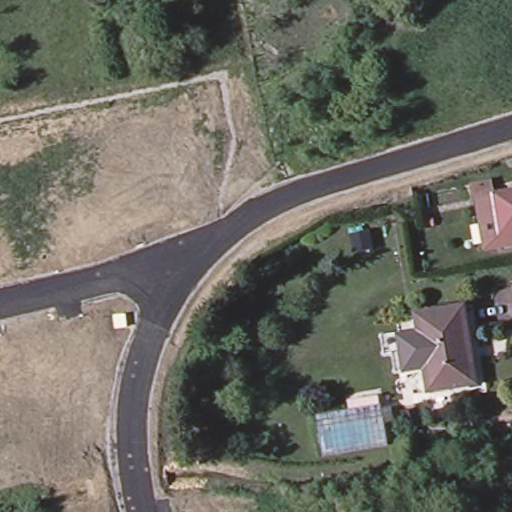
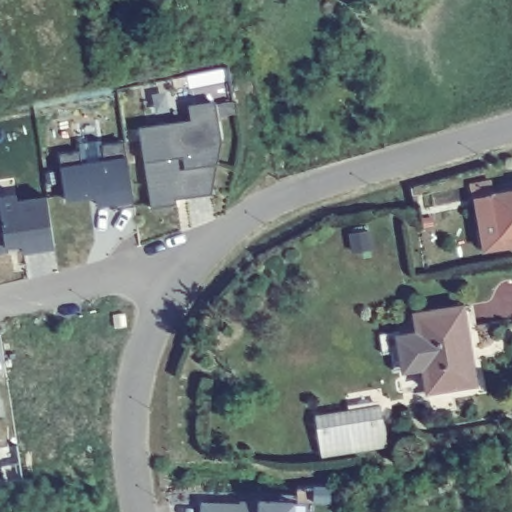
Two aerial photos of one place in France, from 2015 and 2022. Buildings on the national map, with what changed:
new [(175,195),(177,203),(150,205),(143,158),(139,126),(192,119),(190,104),(215,101),(222,142),(217,163),(211,193),(175,195)]
new [(117,208),(117,202),(95,205),(95,196),(66,201),(60,166),(59,154),(80,151),(82,163),(105,158),(103,145),(123,142),(125,157),(133,204),(117,208)]
unchanged [(499,238),(512,236),(512,247),(481,252),(469,184),(493,179),(496,197),(492,198),(499,238)]
new [(24,253),(23,244),(7,247),(7,251),(0,252),(0,197),(15,194),(17,201),(47,197),(54,248),(24,253)]
unchanged [(512,195),(512,236),(499,238),(492,198),(512,195)]
unchanged [(414,317),(467,308),(471,329),(465,330),(473,387),(426,395),(422,370),(417,337),(414,317)]
unchanged [(400,374),(392,375),(390,356),(381,357),(378,338),(397,335),(398,340),(400,340),(417,337),(422,370),(400,374)]
unchanged [(383,415),(390,452),(325,463),(319,425),(383,415)]
new [(200,512),(200,500),(241,502),(241,500),(258,500),(297,501),(296,512),(200,512)]

